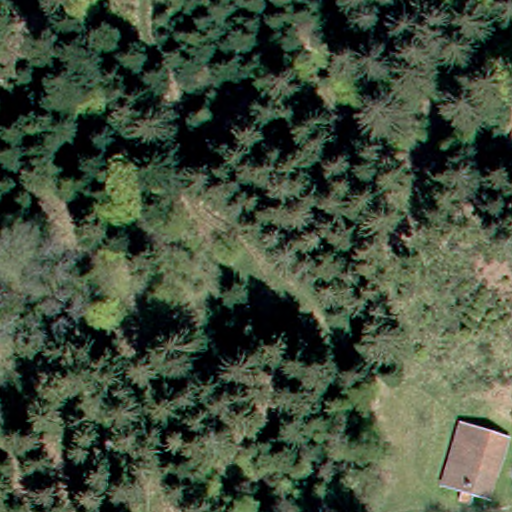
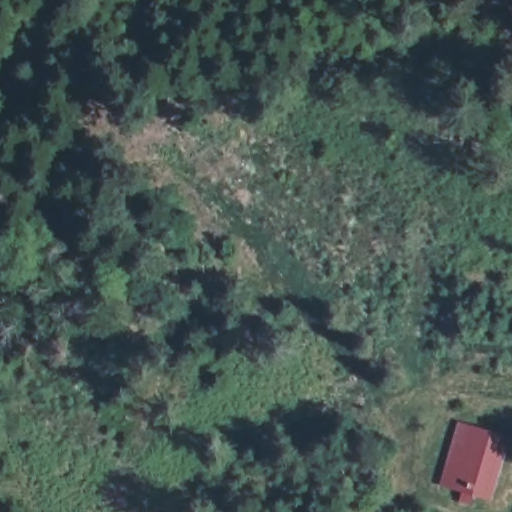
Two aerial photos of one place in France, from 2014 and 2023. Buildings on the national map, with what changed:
unchanged [(510,431),(488,503),(435,488),(456,417),(510,431)]

